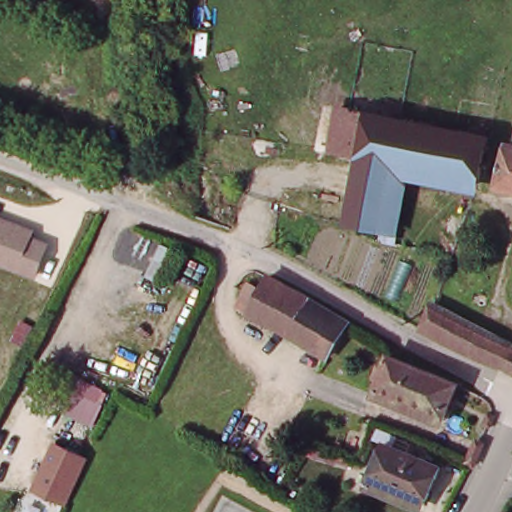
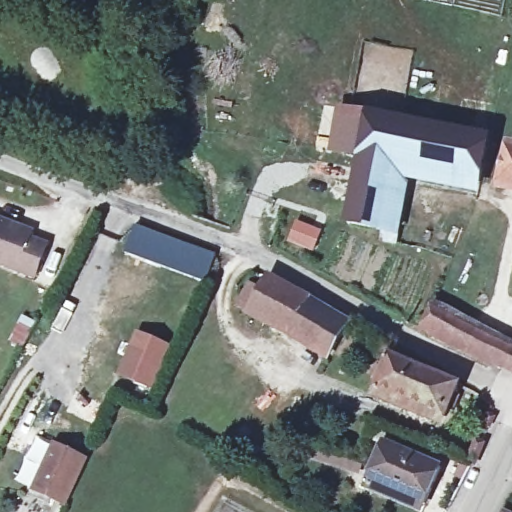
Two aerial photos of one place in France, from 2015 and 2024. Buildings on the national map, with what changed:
unchanged [(326,145),(336,105),(367,111),(356,155),(326,145)]
unchanged [(367,111),(485,137),(476,181),(407,166),(356,155),(367,111)]
unchanged [(512,144),(512,184),(502,182),(510,144),(512,144)]
unchanged [(393,234),(342,224),(356,155),(407,166),(393,234)]
unchanged [(31,230),(29,236),(47,241),(34,280),(0,268),(0,219),(31,230)]
new [(133,222),(217,252),(206,282),(122,251),(133,222)]
unchanged [(346,325),(325,363),(243,318),(265,280),(313,305),(346,325)]
unchanged [(433,303),(501,336),(505,328),(512,331),(512,372),(418,329),(433,303)]
new [(134,329),(173,346),(154,390),(116,375),(134,329)]
unchanged [(376,392),(388,361),(455,388),(443,419),(376,392)]
unchanged [(107,394),(91,428),(59,412),(76,379),(107,394)]
unchanged [(88,460),(66,508),(33,492),(54,446),(88,460)]
unchanged [(420,508),(365,482),(381,448),(436,475),(420,508)]

